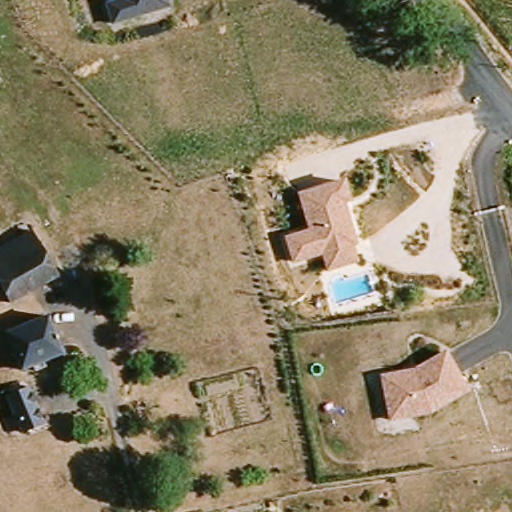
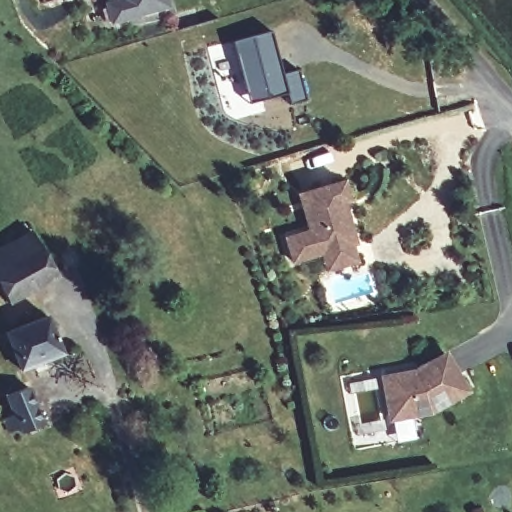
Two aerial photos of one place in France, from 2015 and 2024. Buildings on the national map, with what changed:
unchanged [(173,9),(115,24),(108,1),(114,0),(170,0),(173,9)]
new [(283,72),(298,68),(306,98),(290,103),(288,92),(251,103),(233,40),(271,30),(283,72)]
unchanged [(347,178),(354,203),(349,204),(361,244),(354,246),(360,264),(328,273),(324,256),(294,265),(286,236),(308,230),(299,195),(347,178)]
unchanged [(5,284),(0,287),(0,250),(34,230),(43,246),(60,276),(15,302),(5,284)]
unchanged [(60,355),(20,371),(5,335),(45,318),(60,355)]
unchanged [(471,390),(428,418),(390,424),(383,376),(416,370),(447,350),(471,390)]
unchanged [(18,429),(9,432),(3,419),(12,416),(5,397),(26,389),(41,427),(20,435),(18,429)]

